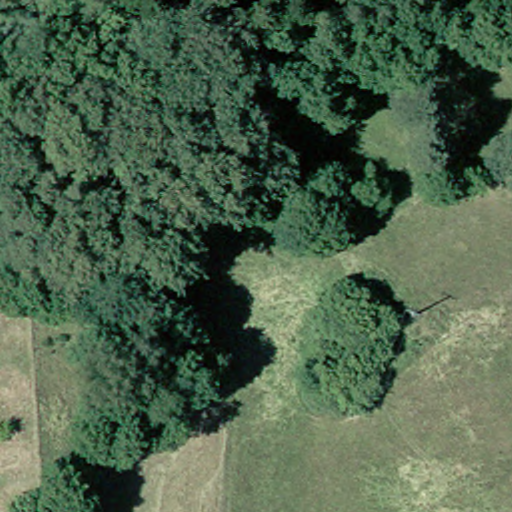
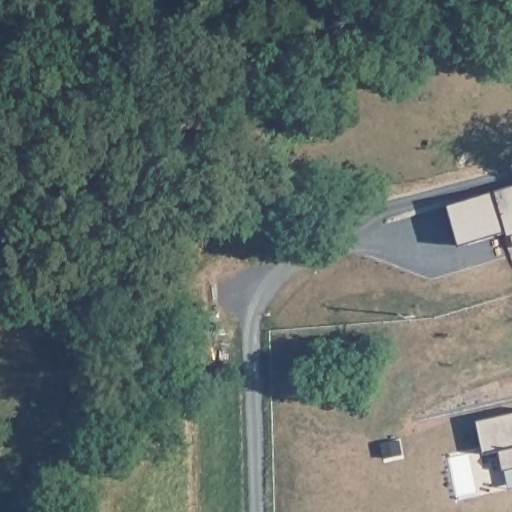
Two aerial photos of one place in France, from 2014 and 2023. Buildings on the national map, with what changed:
new [(460,244),(448,202),(512,185),(512,229),(460,244)]
new [(512,410),(512,466),(505,467),(501,447),(487,450),(480,416),(512,410)]

